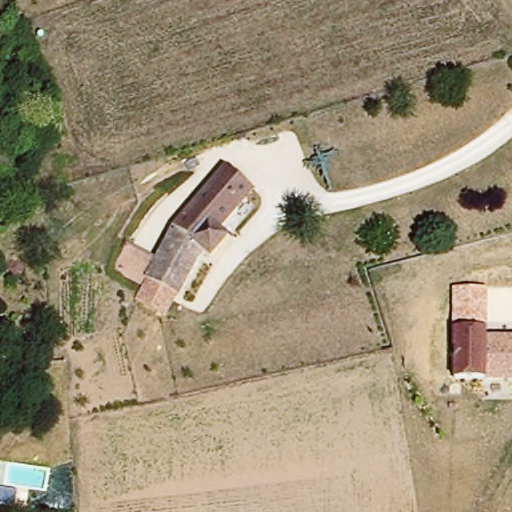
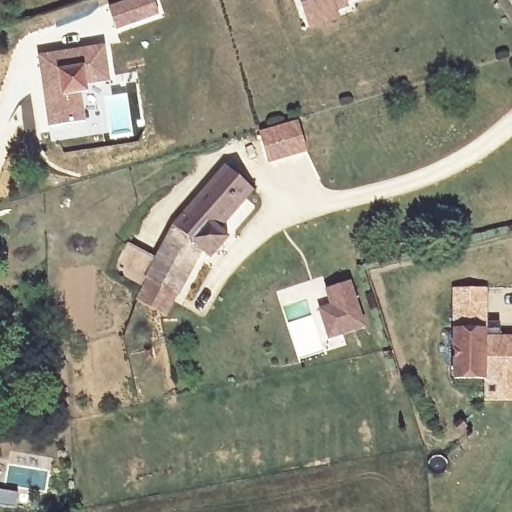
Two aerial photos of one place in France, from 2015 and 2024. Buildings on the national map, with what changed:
new [(155,0),(160,14),(116,29),(108,5),(124,0),(155,0)]
new [(336,10),(338,16),(309,26),(300,0),(347,0),(349,5),(336,10)]
new [(104,43),(110,81),(87,85),(88,92),(82,93),(85,122),(48,128),(37,54),(104,43)]
unchanged [(133,300),(143,283),(114,267),(127,244),(155,259),(174,225),(225,166),(253,190),(220,230),(228,238),(210,258),(202,251),(178,295),(166,318),(133,300)]
new [(327,292),(350,282),(358,300),(370,326),(335,341),(323,312),(334,307),(327,292)]
unchanged [(453,380),(453,324),(452,287),(486,287),(488,324),(488,335),(512,335),(512,380),(453,380)]

